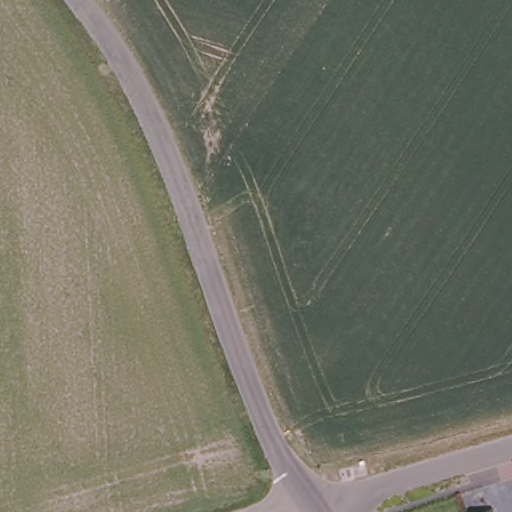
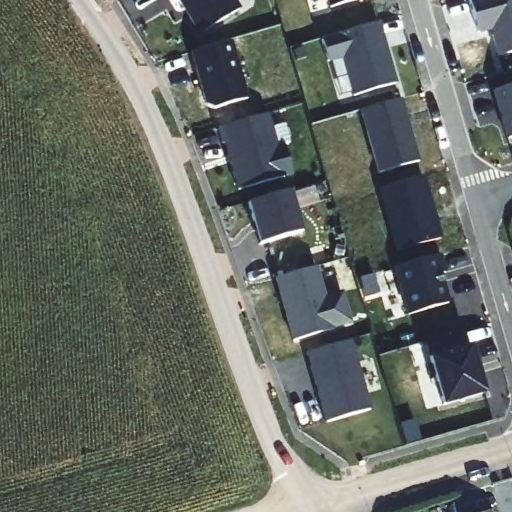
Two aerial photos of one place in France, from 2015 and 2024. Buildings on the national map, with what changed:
new [(200,35),(179,0),(232,0),(239,11),(200,35)]
new [(328,0),(347,0),(330,5),(328,0)]
new [(490,31),(477,35),(468,1),(470,0),(512,0),(512,52),(497,56),(490,31)]
new [(378,22),(397,86),(354,100),(342,58),(327,62),(320,39),(378,22)]
new [(212,109),(204,105),(190,53),(231,41),(247,100),(212,109)]
new [(492,91),(512,86),(512,137),(506,139),(492,91)]
new [(376,175),(359,111),(401,100),(417,162),(376,175)]
new [(269,114),(279,146),(284,144),(293,175),(236,192),(224,144),(222,144),(217,129),(269,114)]
new [(424,175),(442,240),(395,252),(377,187),(424,175)]
new [(301,233),(260,246),(248,204),(289,192),(301,233)]
new [(440,255),(446,273),(441,275),(449,304),(409,316),(395,268),(440,255)]
new [(350,323),(332,328),(333,331),(294,342),(276,280),(315,268),(324,299),(341,294),(350,323)]
new [(461,330),(465,343),(470,342),(484,389),(443,402),(424,340),(461,330)]
new [(352,339),(372,409),(324,422),(304,352),(352,339)]
unchanged [(491,512),(473,512),(488,506),(491,512)]

